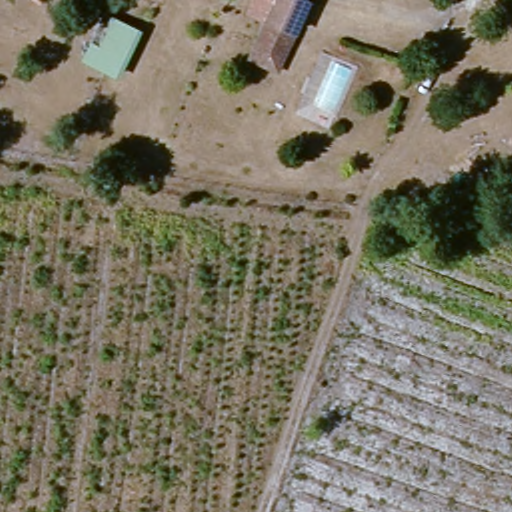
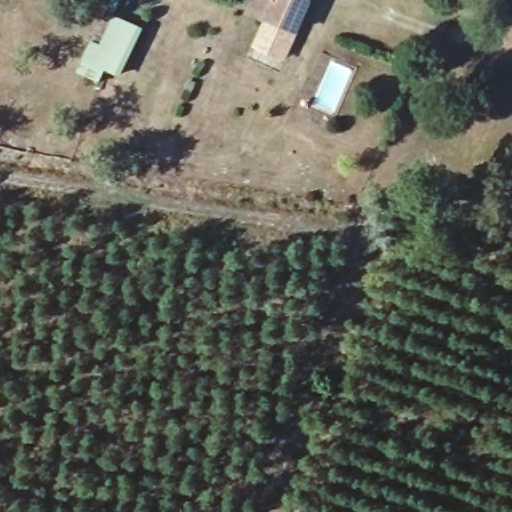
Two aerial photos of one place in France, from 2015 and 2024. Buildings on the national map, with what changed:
unchanged [(291,77),(248,55),(273,0),(315,0),(324,5),(291,77)]
unchanged [(84,60),(106,14),(130,25),(111,74),(84,60)]

